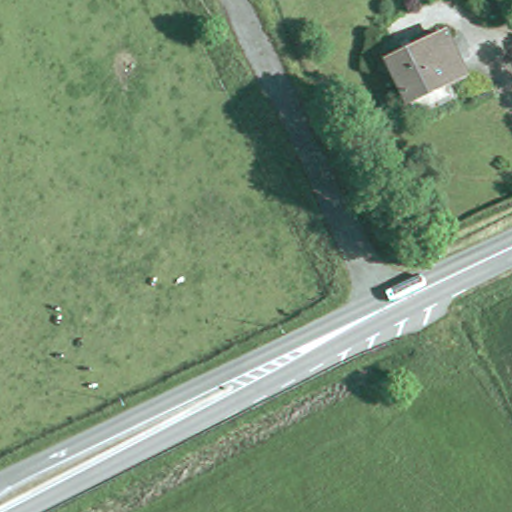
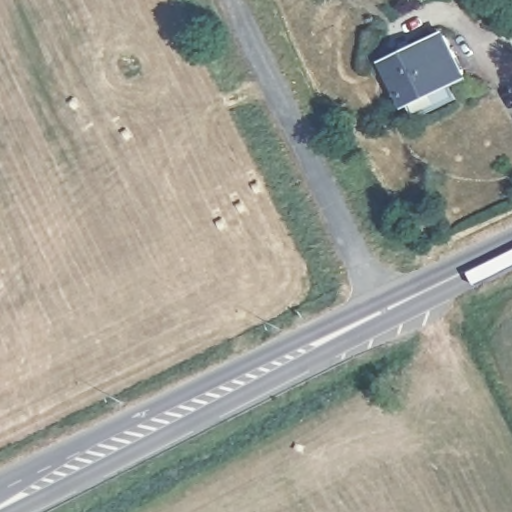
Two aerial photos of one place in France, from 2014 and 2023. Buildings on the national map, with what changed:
unchanged [(448,32),(468,71),(412,100),(392,61),(448,32)]

